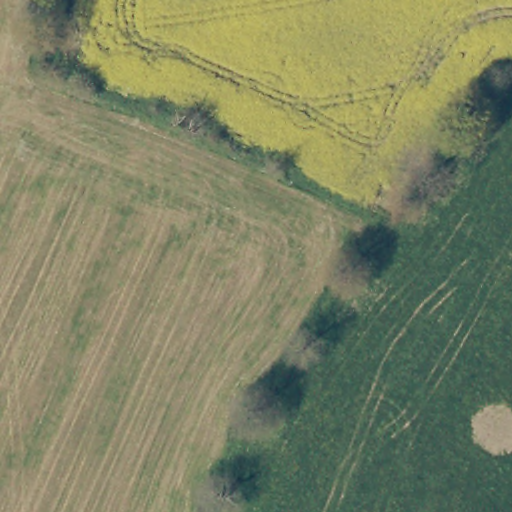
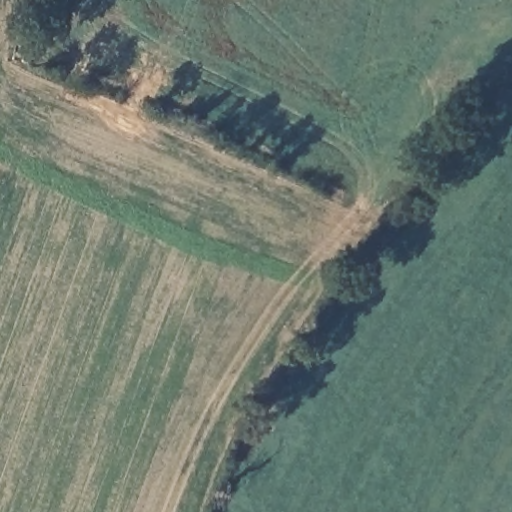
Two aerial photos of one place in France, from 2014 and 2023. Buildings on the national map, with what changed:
[]

